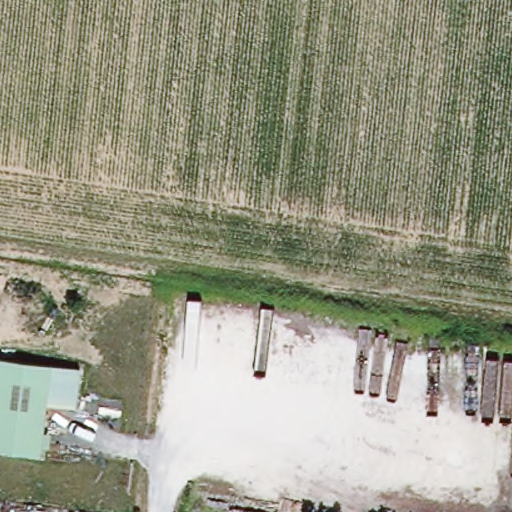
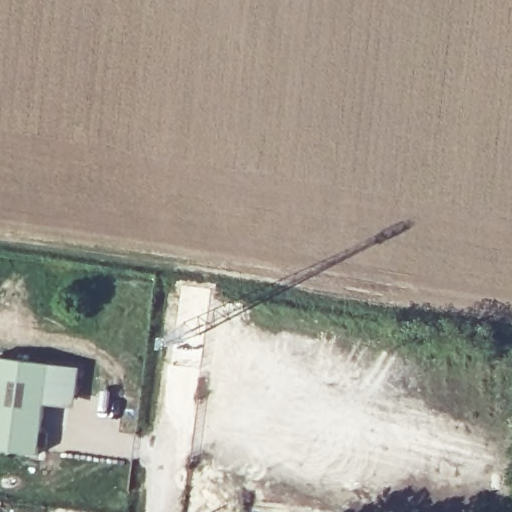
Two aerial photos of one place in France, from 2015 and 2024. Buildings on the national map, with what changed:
unchanged [(0,450),(0,358),(46,364),(37,455),(0,450)]

